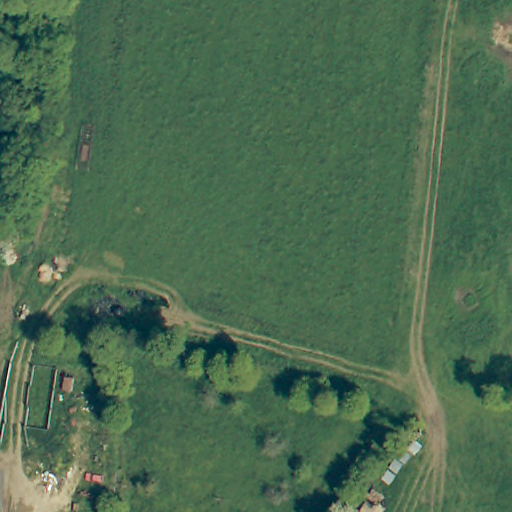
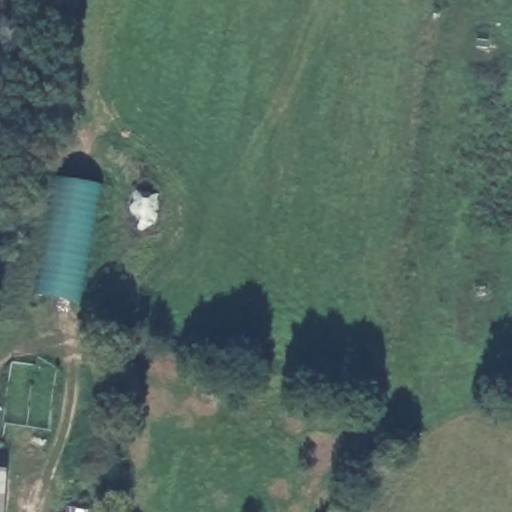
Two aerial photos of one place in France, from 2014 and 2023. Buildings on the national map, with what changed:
new [(60,177),(104,185),(81,304),(37,296),(60,177)]
unchanged [(4,512),(0,512),(0,469),(5,469),(4,512)]

